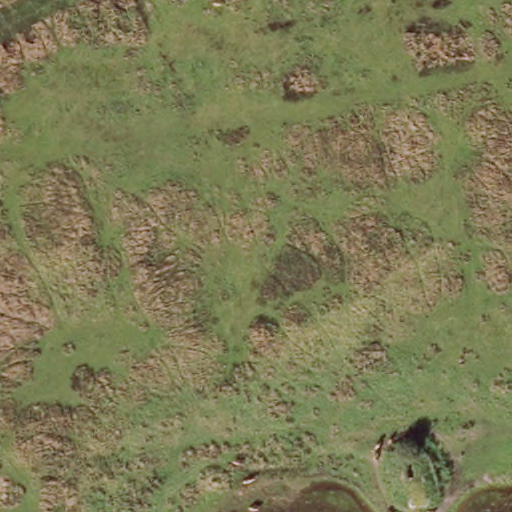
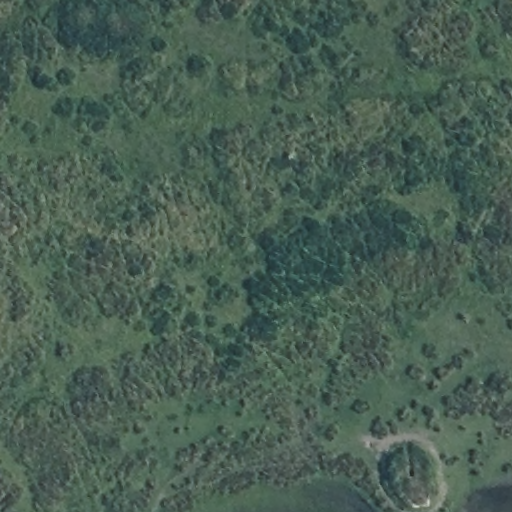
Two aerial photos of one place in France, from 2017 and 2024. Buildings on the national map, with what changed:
unchanged [(410,505),(400,461),(420,458),(427,503),(410,505)]

